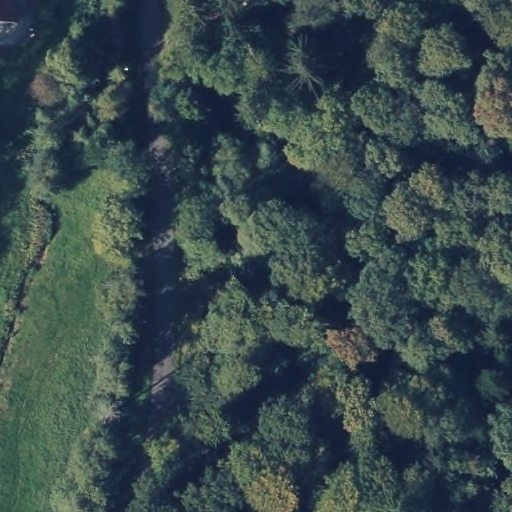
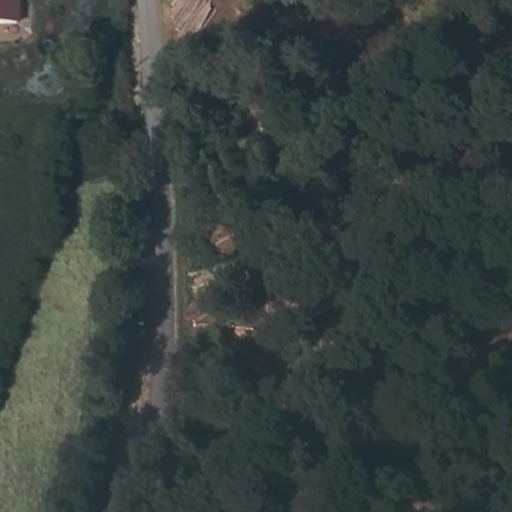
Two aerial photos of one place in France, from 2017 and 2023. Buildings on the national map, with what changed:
unchanged [(20,25),(0,25),(0,0),(19,0),(20,25)]

